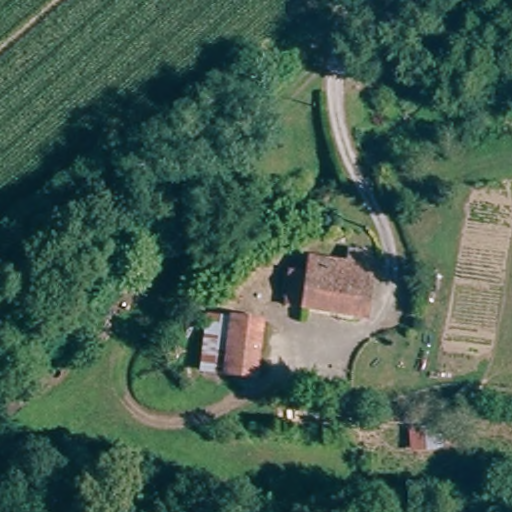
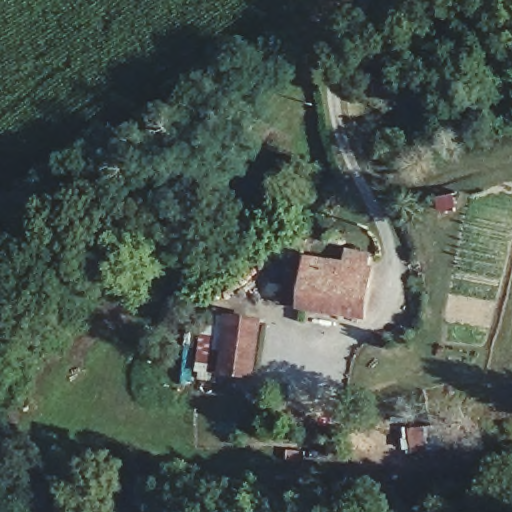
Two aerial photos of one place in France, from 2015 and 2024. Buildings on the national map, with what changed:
unchanged [(301,279),(336,281),(337,270),(357,272),(359,250),(376,252),(370,315),(299,311),(301,279)]
unchanged [(203,314),(265,318),(260,378),(199,372),(203,314)]

